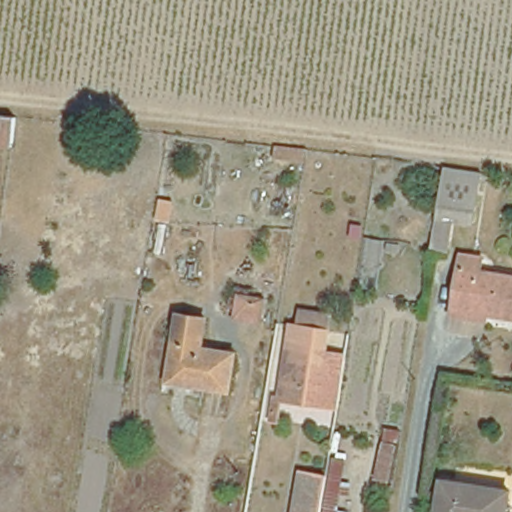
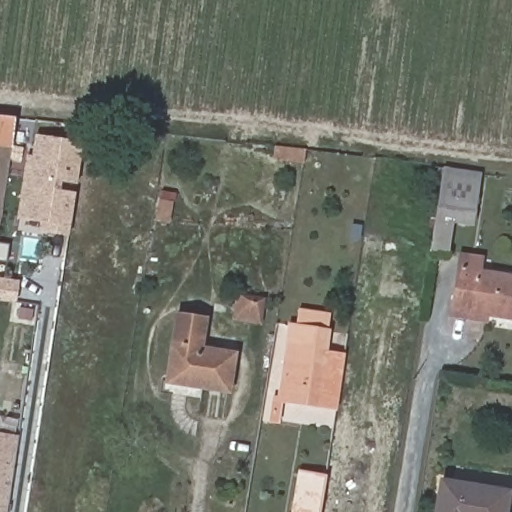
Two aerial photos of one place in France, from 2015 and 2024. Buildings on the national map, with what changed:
unchanged [(0,139),(0,111),(12,112),(7,140),(0,139)]
new [(38,230),(39,221),(17,218),(27,154),(33,155),(37,136),(84,144),(69,236),(38,230)]
unchanged [(483,172),(475,229),(457,227),(452,254),(429,252),(443,168),(483,172)]
unchanged [(487,305),(485,313),(452,307),(458,263),(461,250),(483,253),(481,267),(512,272),(512,309),(487,305)]
new [(15,302),(0,300),(0,280),(17,282),(15,302)]
unchanged [(236,317),(240,293),(245,294),(264,297),(261,321),(241,317),(236,317)]
unchanged [(177,310),(207,314),(202,342),(235,346),(229,385),(169,376),(177,310)]
unchanged [(292,321),(328,326),(325,347),(345,350),(337,401),(281,393),(292,321)]
new [(0,432),(17,435),(6,512),(0,512),(0,432)]
unchanged [(299,473),(301,465),(327,468),(326,477),(320,512),(293,512),(299,473)]
unchanged [(512,485),(512,492),(509,512),(442,512),(447,476),(512,485)]

